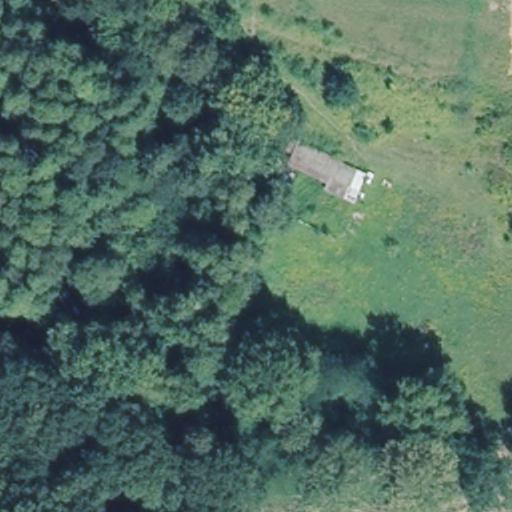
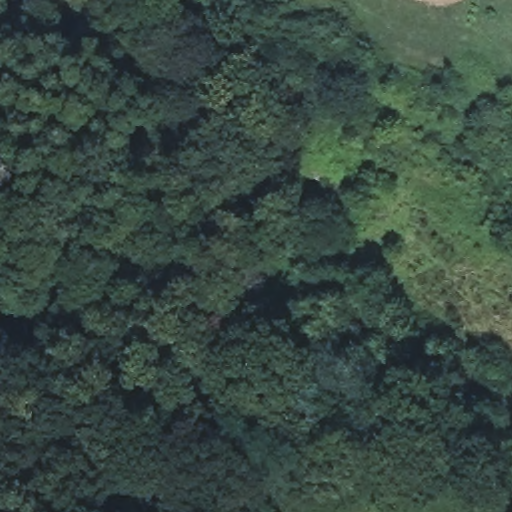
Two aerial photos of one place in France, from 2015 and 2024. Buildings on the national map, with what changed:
unchanged [(356,167),(345,186),(285,162),(293,139),(356,167)]

